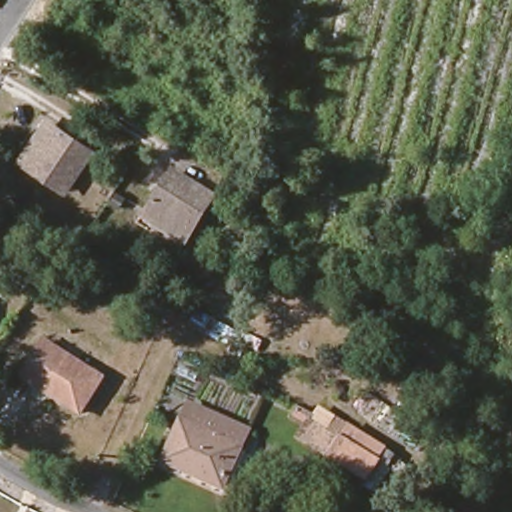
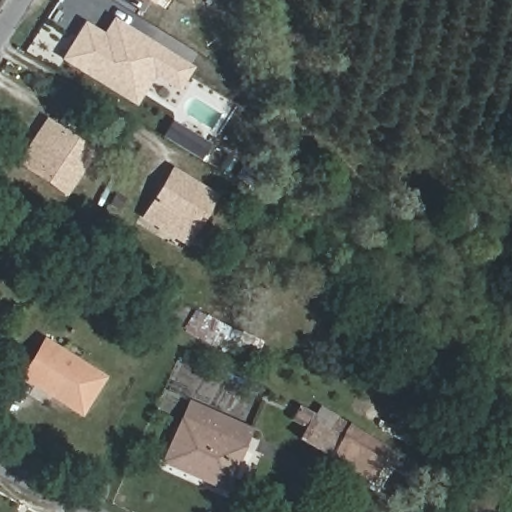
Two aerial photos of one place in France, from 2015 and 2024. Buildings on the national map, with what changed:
new [(152,1),(151,0),(152,0),(152,1)]
new [(101,29),(113,18),(194,67),(175,91),(153,77),(137,102),(133,100),(130,103),(60,59),(83,21),(101,29)]
unchanged [(59,191),(20,166),(47,125),(85,151),(59,191)]
unchanged [(185,239),(145,214),(169,175),(210,200),(185,239)]
unchanged [(84,415),(24,378),(47,340),(107,377),(84,415)]
unchanged [(222,488),(161,462),(188,404),(247,430),(222,488)]
unchanged [(336,467),(305,448),(312,436),(299,429),(304,420),(305,417),(319,425),(318,426),(316,429),(335,441),(339,435),(343,427),(355,435),(394,458),(395,459),(389,469),(376,491),(336,467)]

